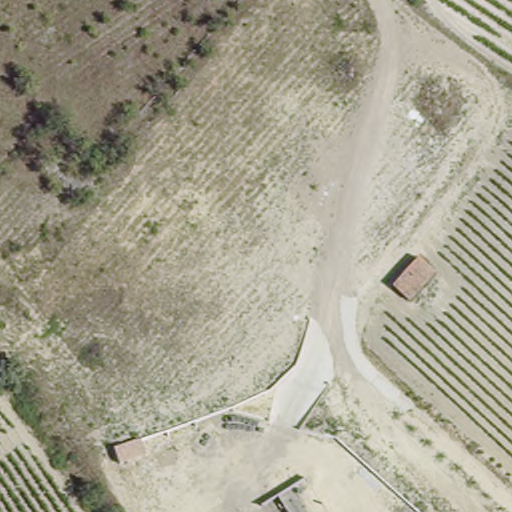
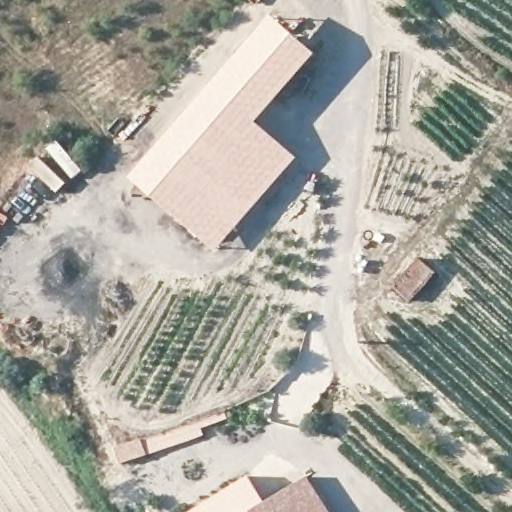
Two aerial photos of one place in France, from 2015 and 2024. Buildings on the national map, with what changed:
new [(283,30),(321,70),(256,131),(292,170),(205,253),(130,174),(283,30)]
unchanged [(404,302),(387,288),(412,258),(429,273),(404,302)]
new [(142,439),(224,410),(227,418),(202,427),(205,435),(147,455),(121,464),(116,447),(142,439)]
new [(250,512),(193,512),(249,476),(265,503),(250,512)]
unchanged [(326,512),(251,512),(304,478),(326,512)]

